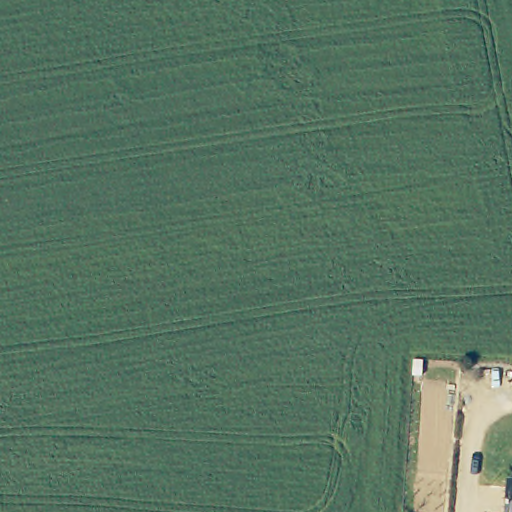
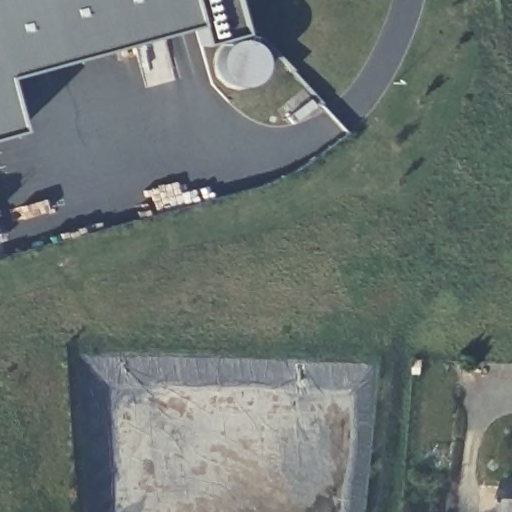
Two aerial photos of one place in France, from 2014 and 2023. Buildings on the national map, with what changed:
new [(233,0),(242,35),(202,46),(196,27),(2,79),(18,132),(0,137),(0,0),(233,0)]
unchanged [(510,486),(512,486),(512,512),(510,512),(510,486)]

